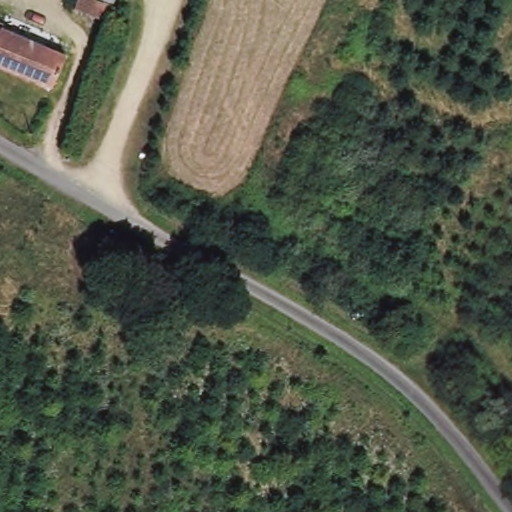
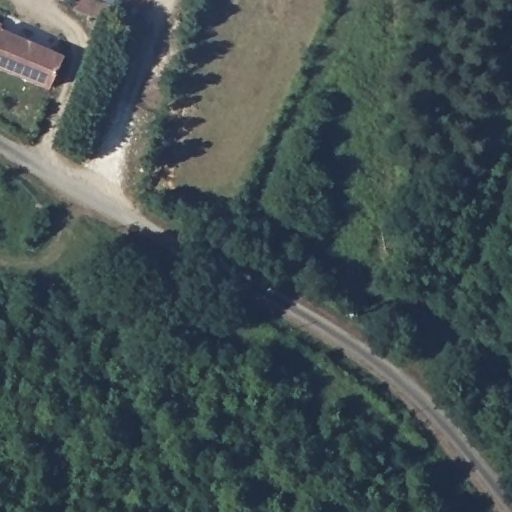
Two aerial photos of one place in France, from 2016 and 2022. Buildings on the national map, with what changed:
unchanged [(108,16),(102,18),(82,10),(85,0),(121,0),(119,5),(116,14),(109,13),(108,16)]
unchanged [(9,27),(72,56),(57,88),(0,61),(0,19),(11,24),(9,27)]

